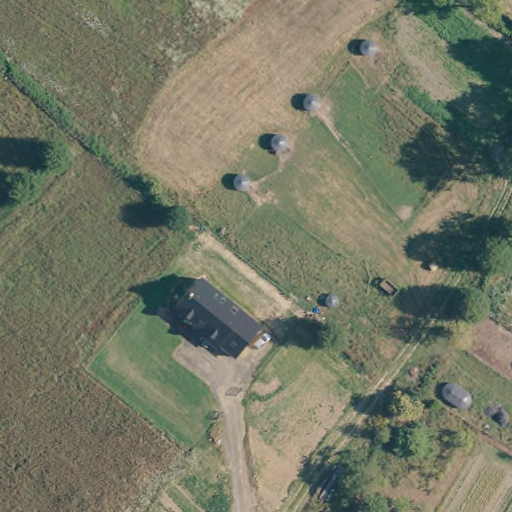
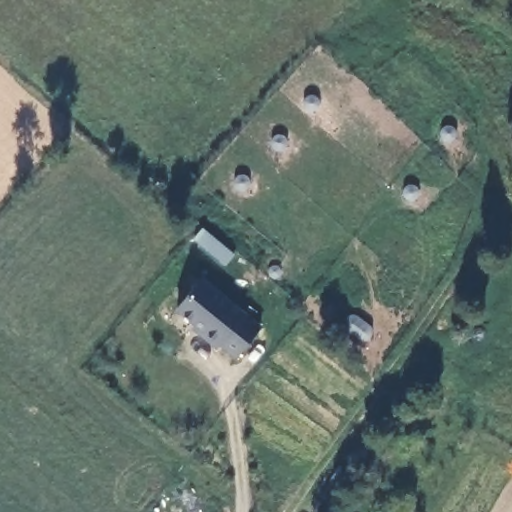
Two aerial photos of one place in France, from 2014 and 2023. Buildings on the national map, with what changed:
unchanged [(220,346),(216,350),(192,329),(195,324),(176,308),(201,278),(263,327),(236,360),(220,346)]

